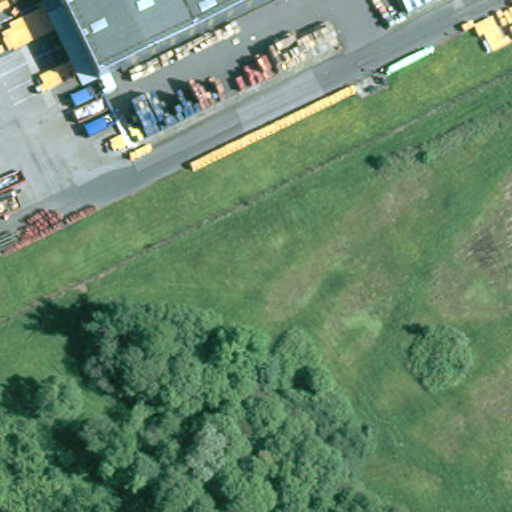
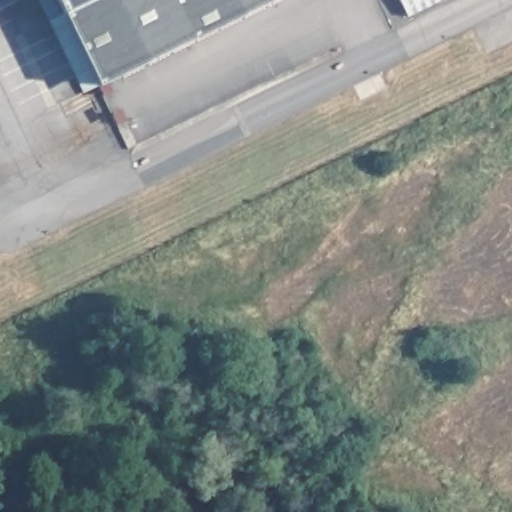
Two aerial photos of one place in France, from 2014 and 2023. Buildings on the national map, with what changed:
unchanged [(41,0),(94,0),(51,21),(41,0)]
unchanged [(51,21),(94,0),(276,0),(85,92),(51,21)]

